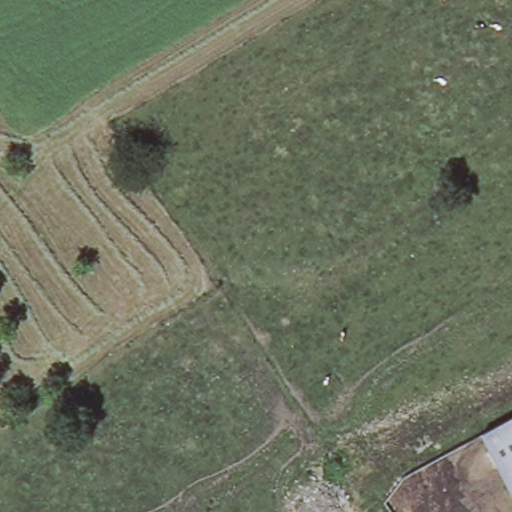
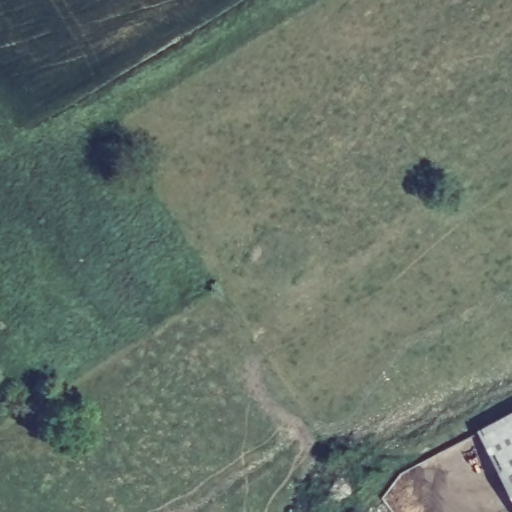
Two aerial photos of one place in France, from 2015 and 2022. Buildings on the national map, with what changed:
unchanged [(512,414),(512,491),(479,432),(512,414)]

